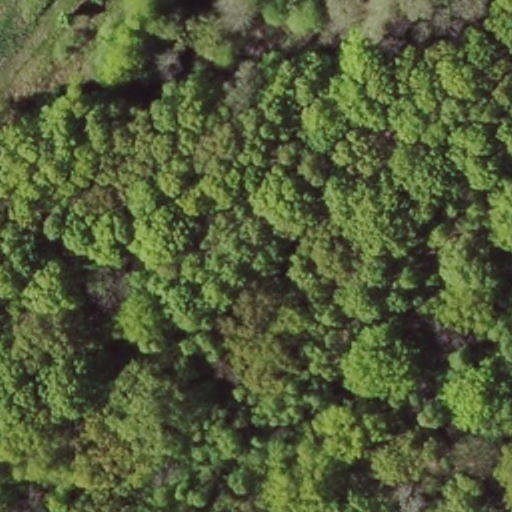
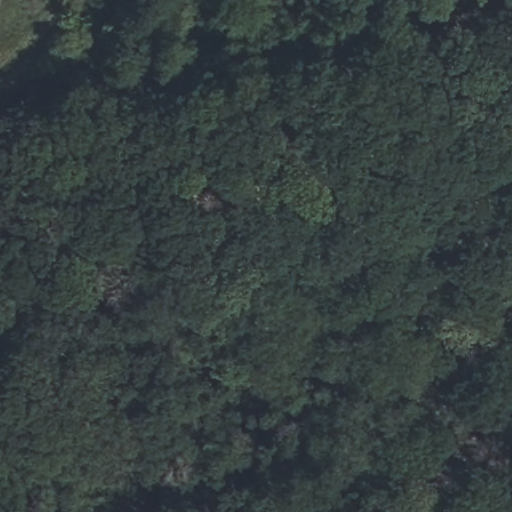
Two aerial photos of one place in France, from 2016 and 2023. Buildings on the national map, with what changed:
unchanged [(341,52),(302,43),(305,18),(317,19),(317,11),(346,20),(341,52)]

